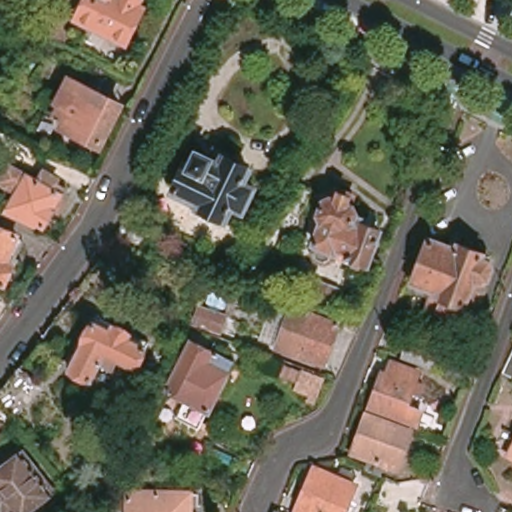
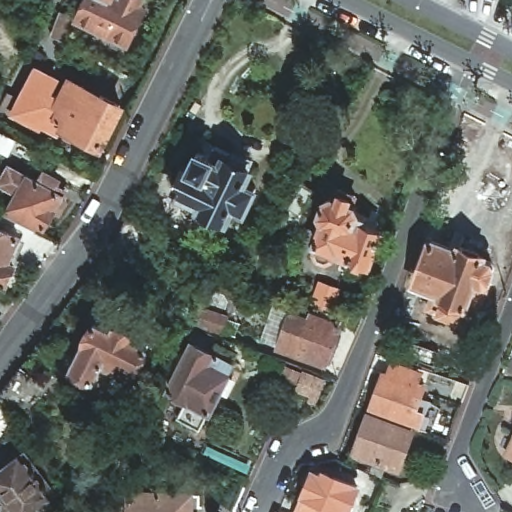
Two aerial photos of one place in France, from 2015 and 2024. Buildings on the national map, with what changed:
unchanged [(34,0),(43,0),(41,3),(34,0)]
unchanged [(139,27),(129,47),(95,30),(97,26),(78,16),(86,0),(143,0),(131,24),(139,27)]
unchanged [(73,16),(74,23),(65,45),(50,37),(60,10),(73,16)]
new [(57,105),(62,106),(56,118),(67,123),(62,131),(59,137),(42,130),(41,132),(11,115),(36,65),(70,80),(57,105)]
unchanged [(102,144),(83,135),(81,140),(62,131),(67,123),(56,118),(62,106),(57,105),(70,80),(84,87),(100,96),(120,106),(102,144)]
unchanged [(12,142),(5,156),(0,154),(0,136),(12,142)]
unchanged [(250,170),(244,184),(255,189),(243,213),(231,207),(224,221),(200,209),(201,205),(174,192),(187,165),(190,167),(199,151),(214,159),(212,162),(220,166),(225,158),(250,170)]
unchanged [(20,180),(13,176),(17,168),(35,177),(40,169),(57,179),(52,187),(60,192),(42,224),(36,220),(34,225),(5,212),(20,180)]
unchanged [(312,194),(296,220),(282,210),(284,207),(298,185),(312,194)]
unchanged [(354,200),(350,209),(353,211),(356,217),(351,230),(358,233),(360,229),(381,236),(369,269),(355,263),(353,267),(335,260),(335,256),(333,255),(330,266),(325,268),(317,265),(316,257),(319,251),(315,249),(323,228),(318,220),(323,205),(333,203),(336,195),(354,200)]
unchanged [(125,219),(155,231),(145,254),(114,241),(125,219)]
unchanged [(16,239),(6,264),(12,266),(4,287),(0,286),(0,232),(16,239)]
unchanged [(453,246),(455,244),(477,251),(476,255),(485,256),(489,262),(485,274),(478,278),(482,284),(477,300),(472,304),(463,300),(456,320),(433,313),(434,310),(425,307),(431,287),(412,280),(426,237),(453,246)]
unchanged [(345,297),(336,319),(317,311),(325,289),(345,297)]
unchanged [(222,320),(217,334),(195,325),(200,311),(222,320)]
unchanged [(87,339),(85,338),(99,320),(115,332),(120,326),(134,336),(129,343),(146,355),(130,377),(100,357),(89,373),(71,360),(87,339)]
unchanged [(330,371),(285,354),(297,321),(315,327),(318,321),(327,323),(329,320),(348,321),(330,371)]
unchanged [(402,356),(409,339),(438,348),(431,366),(402,356)]
unchanged [(211,352),(205,364),(213,367),(219,355),(230,361),(227,368),(229,369),(226,375),(229,376),(202,432),(177,420),(187,401),(170,393),(193,343),(211,352)]
unchanged [(2,397),(15,382),(26,367),(39,352),(46,358),(49,355),(64,367),(50,385),(30,403),(19,418),(2,397)]
unchanged [(400,413),(370,403),(383,370),(387,372),(392,359),(418,370),(415,378),(426,382),(421,395),(410,391),(405,404),(421,410),(415,424),(398,418),(400,413)]
unchanged [(317,408),(305,405),(307,398),(292,393),(297,385),(281,379),(285,366),(326,380),(317,408)]
unchanged [(512,366),(512,378),(508,376),(512,366)]
unchanged [(411,426),(396,465),(355,449),(368,412),(411,426)]
unchanged [(512,454),(512,455),(511,455),(512,454)]
unchanged [(24,460),(51,496),(30,512),(9,512),(9,511),(7,512),(0,512),(0,478),(24,460)]
unchanged [(317,470),(323,472),(356,488),(346,512),(296,512),(308,487),(317,470)]
unchanged [(200,491),(200,512),(139,512),(139,490),(200,491)]
unchanged [(130,502),(130,512),(121,512),(120,502),(130,502)]

